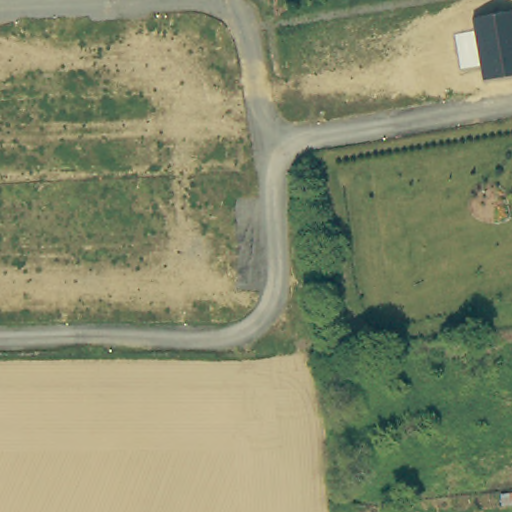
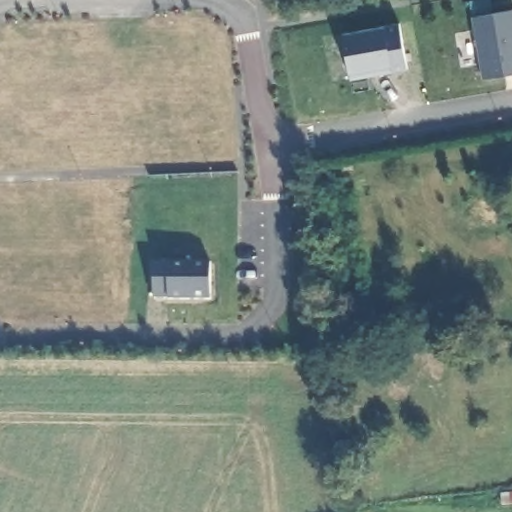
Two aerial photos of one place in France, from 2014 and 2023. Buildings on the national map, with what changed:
unchanged [(512,75),(483,79),(473,16),(512,10),(512,75)]
new [(352,80),(340,33),(401,21),(412,70),(352,80)]
new [(210,300),(168,299),(168,295),(156,295),(155,261),(211,260),(210,300)]

